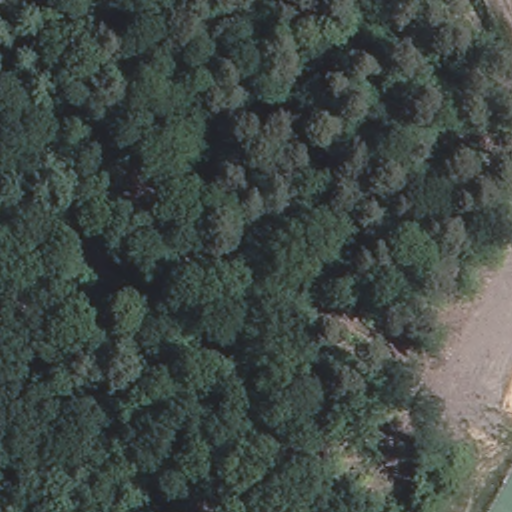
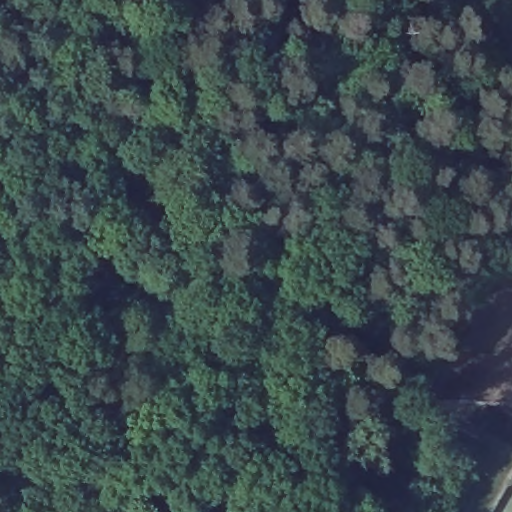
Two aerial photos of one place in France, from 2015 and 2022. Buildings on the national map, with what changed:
[]

